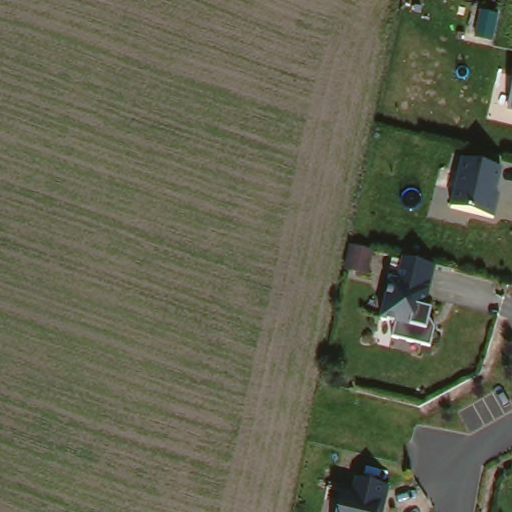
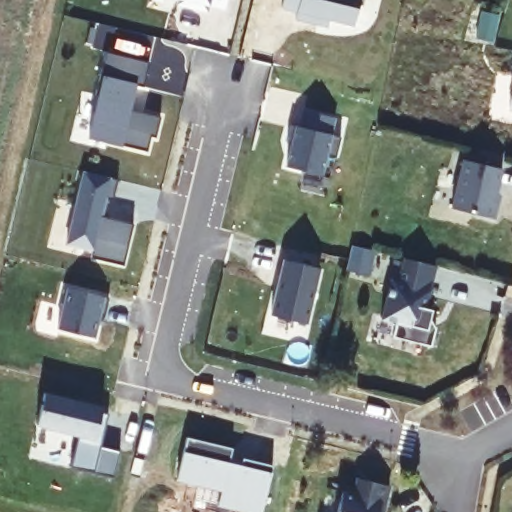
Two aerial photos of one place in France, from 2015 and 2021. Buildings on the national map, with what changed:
new [(224,10),(207,6),(206,13),(177,6),(179,0),(227,0),(224,10)]
new [(284,0),(362,0),(354,27),(329,21),(327,29),(294,21),(296,14),(281,11),(284,0)]
new [(124,147),(87,140),(103,76),(107,54),(150,63),(144,89),(137,87),(132,111),(162,119),(157,139),(151,137),(147,153),(124,147)]
new [(295,123),(302,125),(305,109),(337,119),(333,137),(341,139),(336,159),(328,157),(323,178),(286,167),(295,123)]
unchanged [(495,198),(498,203),(495,218),(452,208),(464,160),(502,169),(495,198)]
new [(85,172),(119,180),(114,201),(107,199),(103,217),(122,221),(112,263),(92,258),(93,251),(67,245),(85,172)]
unchanged [(430,341),(408,336),(410,326),(387,316),(394,276),(403,275),(408,256),(437,263),(425,302),(438,309),(430,341)]
new [(283,260),(321,269),(310,325),(271,316),(283,260)]
new [(68,288),(109,298),(105,317),(100,316),(95,338),(58,330),(68,288)]
new [(77,436),(36,425),(44,392),(102,408),(100,414),(107,415),(100,447),(121,451),(114,478),(70,466),(77,436)]
new [(221,491),(177,483),(187,439),(234,449),(230,463),(242,467),(244,459),(273,466),(272,473),(262,512),(247,512),(217,505),(221,491)]
unchanged [(345,512),(350,490),(357,492),(362,475),(393,490),(387,512),(345,512)]

